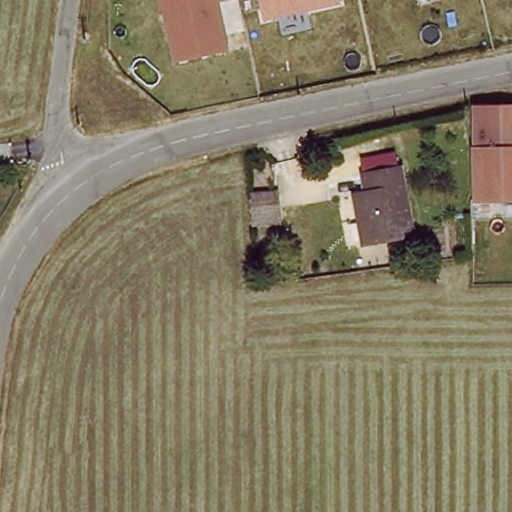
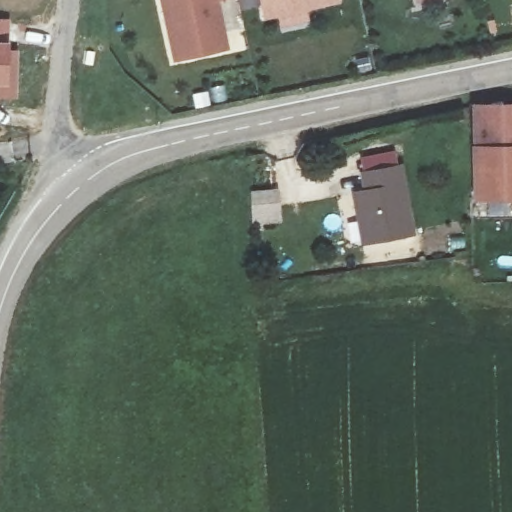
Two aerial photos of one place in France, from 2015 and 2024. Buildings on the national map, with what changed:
unchanged [(159,0),(228,0),(220,1),(228,50),(173,61),(159,0)]
unchanged [(258,0),(340,0),(341,2),(263,18),(258,0)]
new [(8,18),(8,40),(0,40),(0,18),(8,18)]
new [(8,40),(9,47),(18,47),(17,99),(0,98),(0,40),(8,40)]
unchanged [(512,109),(512,200),(487,201),(482,110),(505,109),(512,109)]
unchanged [(373,192),(370,173),(398,169),(410,236),(364,246),(355,196),(373,192)]
unchanged [(253,220),(252,211),(277,210),(278,231),(253,232),(253,220)]

